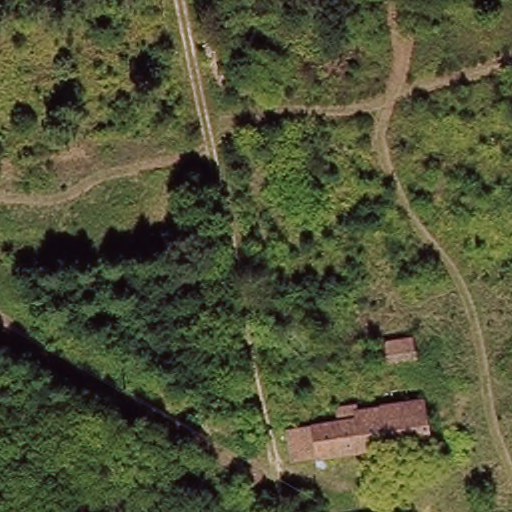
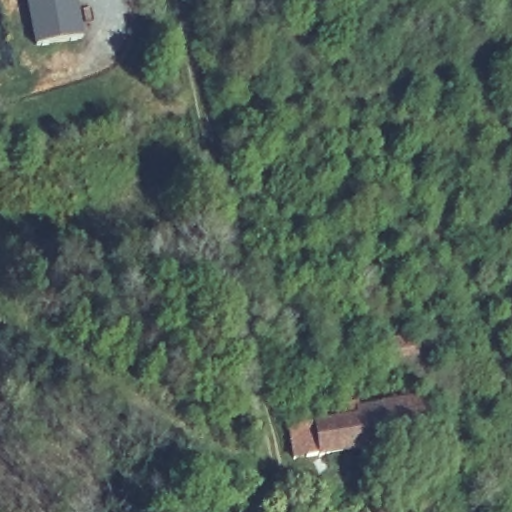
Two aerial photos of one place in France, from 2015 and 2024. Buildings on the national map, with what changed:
new [(35,46),(26,0),(76,0),(82,36),(35,46)]
unchanged [(412,338),(425,336),(428,356),(395,362),(392,342),(412,338)]
unchanged [(425,442),(315,462),(315,461),(290,465),(285,437),(310,433),(310,432),(360,422),(358,409),(376,406),(378,412),(421,404),(421,405),(425,442)]

